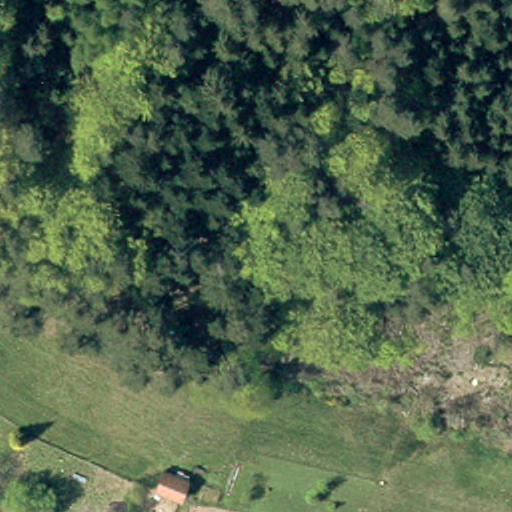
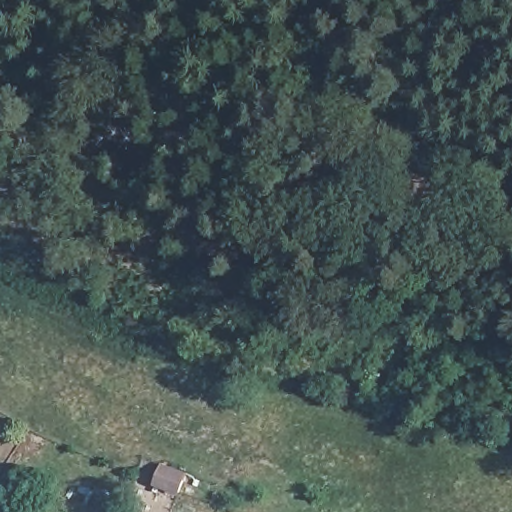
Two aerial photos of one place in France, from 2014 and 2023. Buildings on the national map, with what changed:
unchanged [(187,473),(182,492),(157,485),(163,465),(187,473)]

